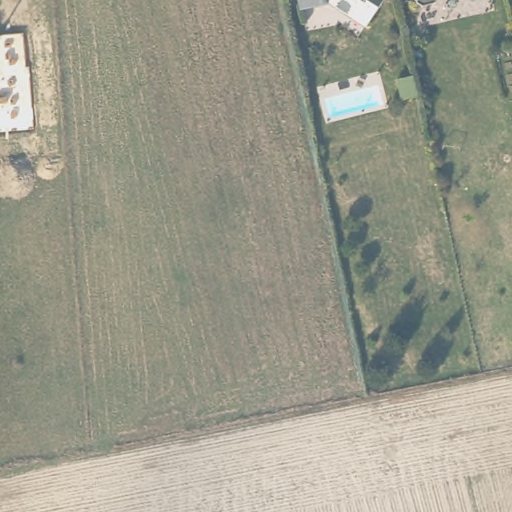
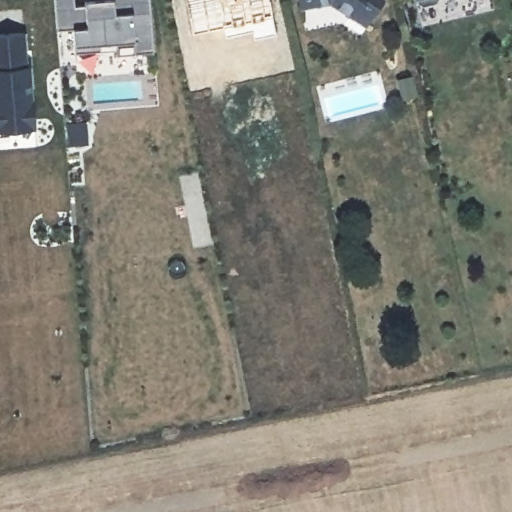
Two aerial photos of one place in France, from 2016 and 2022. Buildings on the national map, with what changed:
new [(135,53),(131,40),(100,43),(100,50),(75,52),(74,44),(72,29),(57,29),(55,7),(54,0),(74,0),(75,5),(85,5),(85,0),(150,0),(154,52),(135,53)]
unchanged [(363,22),(327,4),(300,11),(297,0),(378,0),(363,22)]
unchanged [(432,0),(428,6),(416,8),(410,5),(410,2),(409,3),(408,0),(432,0)]
unchanged [(457,1),(457,0),(459,0),(457,1)]
unchanged [(29,66),(30,66),(36,128),(0,131),(0,35),(25,34),(29,66)]

